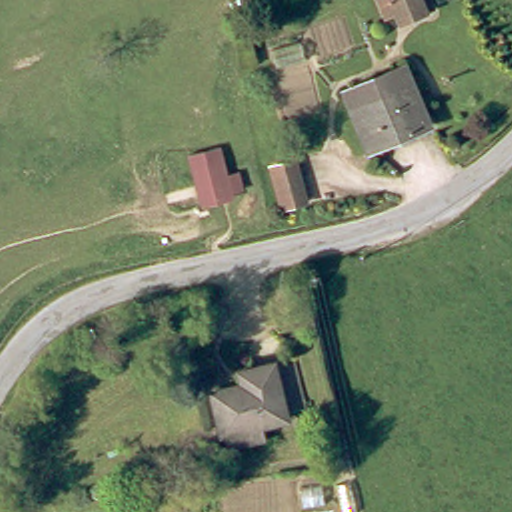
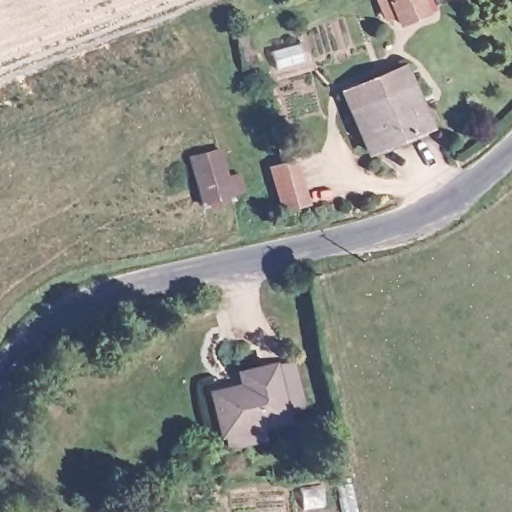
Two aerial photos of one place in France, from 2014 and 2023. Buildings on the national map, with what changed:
unchanged [(426,0),(427,3),(402,13),(397,3),(385,8),(382,0),(426,0)]
unchanged [(365,147),(340,88),(370,75),(400,63),(408,81),(425,122),(365,147)]
unchanged [(180,158),(210,148),(222,194),(194,204),(180,158)]
unchanged [(267,167),(290,160),(302,200),(280,208),(267,167)]
unchanged [(214,432),(210,432),(200,388),(230,381),(228,368),(265,359),(265,361),(284,356),(295,404),(277,408),(279,417),(252,423),(254,434),(217,443),(214,432)]

